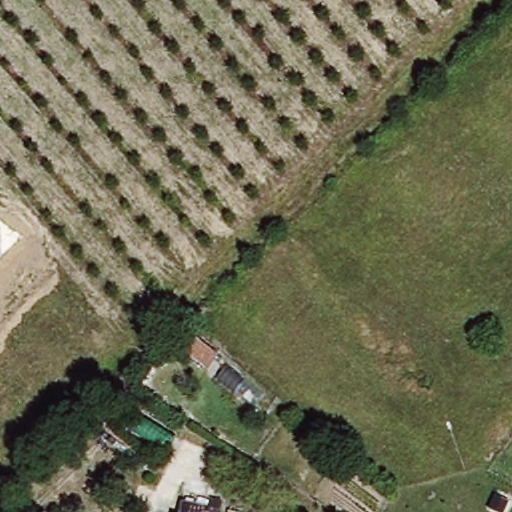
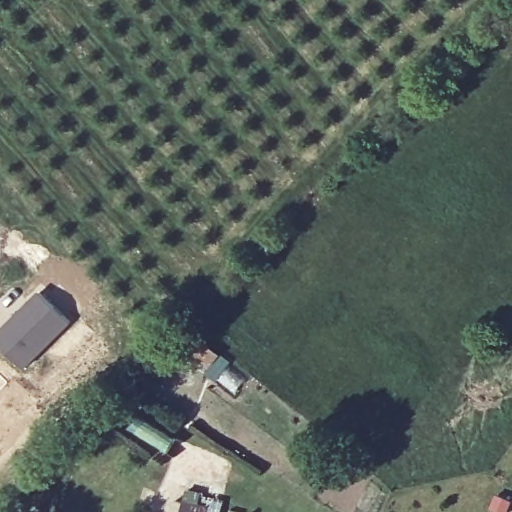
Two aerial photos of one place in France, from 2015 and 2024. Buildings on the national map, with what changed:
new [(39,290),(71,323),(26,368),(0,343),(0,330),(39,290)]

